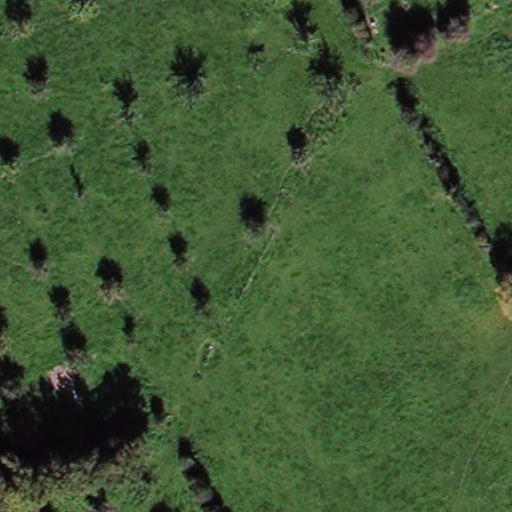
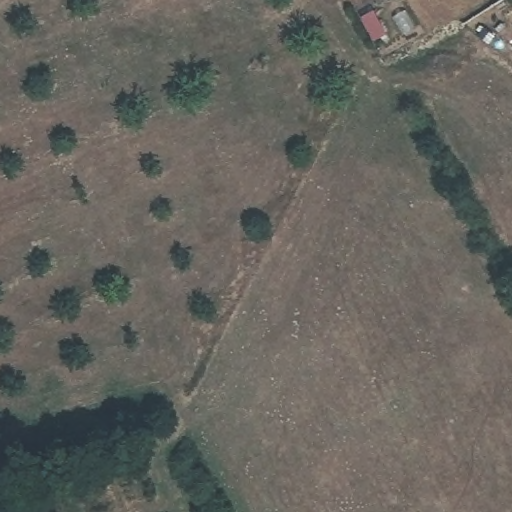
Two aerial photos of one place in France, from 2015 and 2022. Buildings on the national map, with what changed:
[]

